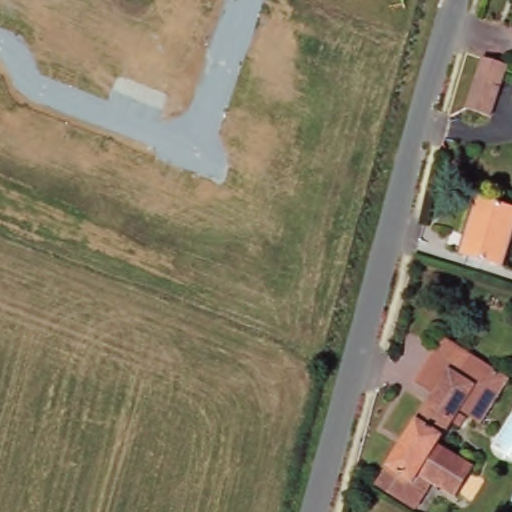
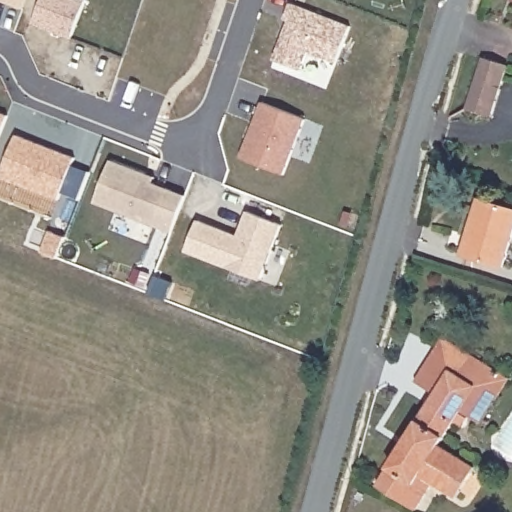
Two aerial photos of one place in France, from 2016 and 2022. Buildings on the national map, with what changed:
new [(0,0),(26,0),(22,9),(0,0)]
new [(87,0),(72,39),(33,24),(42,0),(87,0)]
new [(351,26),(337,63),(308,52),(302,71),(274,60),(288,20),(285,20),(291,2),(351,26)]
unchanged [(510,65),(490,117),(466,107),(483,58),(510,65)]
new [(262,102),(306,119),(284,175),(241,158),(262,102)]
new [(0,137),(0,113),(8,116),(0,137)]
new [(80,200),(62,193),(59,200),(1,177),(17,135),(75,158),(72,165),(91,172),(80,200)]
new [(147,174),(156,177),(153,183),(186,196),(172,232),(95,202),(112,160),(147,174)]
unchanged [(509,256),(507,263),(467,252),(482,197),(512,205),(512,245),(509,256)]
new [(198,221),(238,236),(248,212),(282,225),(261,280),(186,251),(198,221)]
unchanged [(463,408),(440,447),(473,467),(455,499),(433,486),(421,506),(382,482),(440,386),(441,382),(421,370),(442,333),(512,372),(512,373),(490,411),(484,421),(463,408)]

